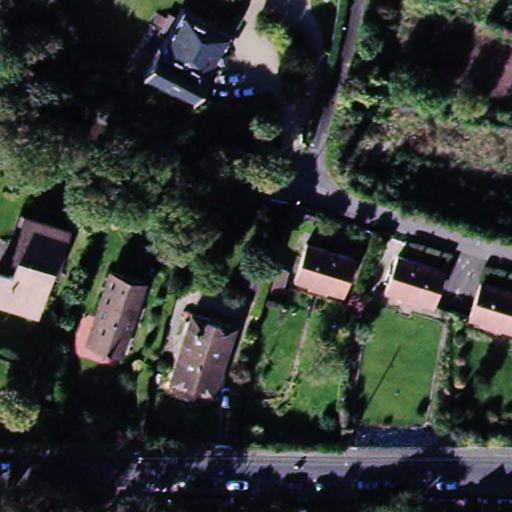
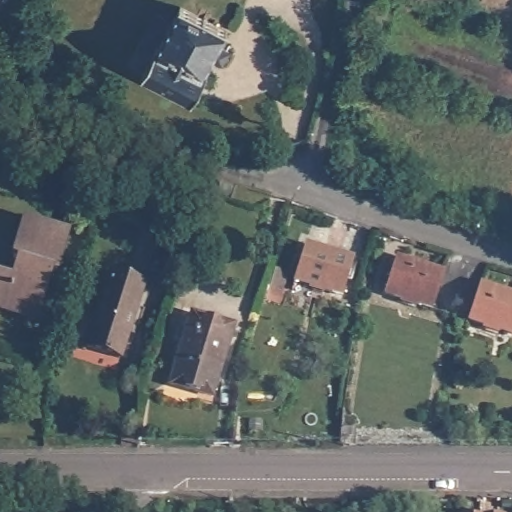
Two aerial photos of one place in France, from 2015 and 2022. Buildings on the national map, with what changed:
unchanged [(182,5),(228,28),(206,70),(208,72),(194,100),(143,72),(158,45),(160,47),(182,5)]
unchanged [(66,231),(53,273),(46,272),(33,315),(0,305),(0,275),(10,278),(15,262),(8,260),(23,217),(66,231)]
unchanged [(294,278),(306,244),(353,259),(341,294),(294,278)]
unchanged [(386,289),(397,252),(443,266),(431,303),(386,289)]
unchanged [(288,288),(283,306),(264,300),(274,267),(286,271),(281,286),(288,288)]
unchanged [(111,270),(146,281),(121,356),(88,345),(111,270)]
unchanged [(474,320),(486,283),(512,291),(512,331),(474,320)]
unchanged [(171,381),(191,312),(231,324),(211,392),(171,381)]

